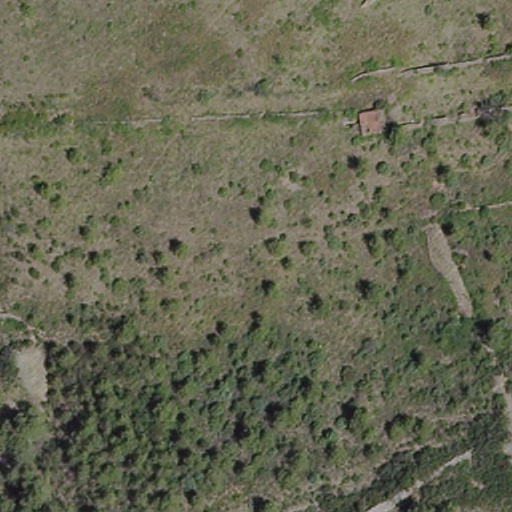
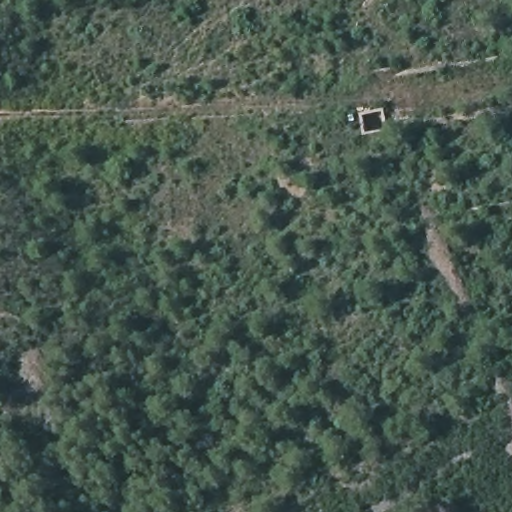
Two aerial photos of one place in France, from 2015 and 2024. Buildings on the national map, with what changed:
unchanged [(382,128),(382,130),(362,134),(358,111),(378,107),(382,128)]

